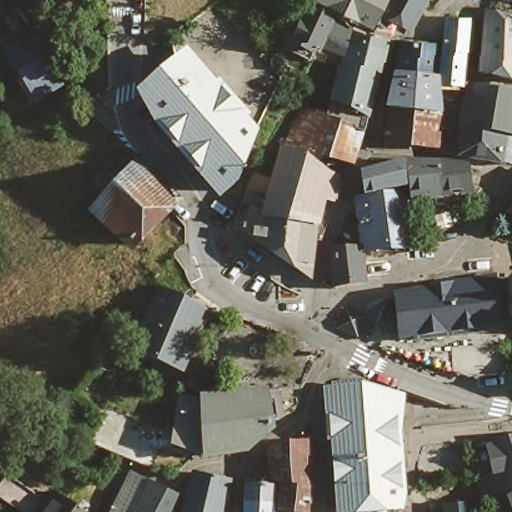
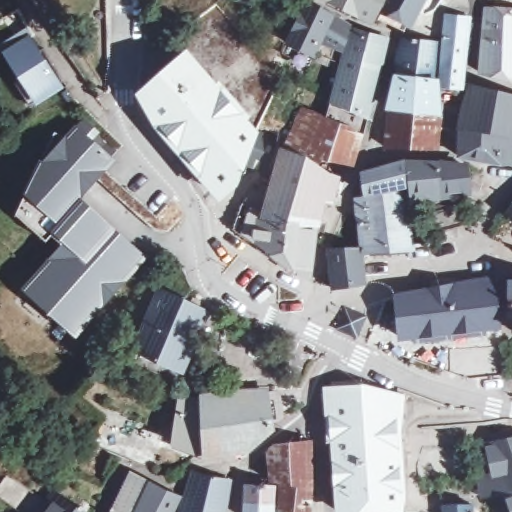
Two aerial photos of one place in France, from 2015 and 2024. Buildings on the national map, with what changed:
unchanged [(372,23),(322,0),(385,0),(377,14),(372,23)]
unchanged [(390,0),(427,0),(410,31),(381,16),(390,0)]
unchanged [(289,40),(297,25),(308,5),(333,17),(332,20),(341,26),(332,43),(322,37),(312,54),(289,40)]
unchanged [(480,73),(487,9),(492,10),(512,10),(512,81),(480,73)]
unchanged [(434,90),(438,40),(441,13),(465,20),(455,89),(434,90)]
unchanged [(363,134),(327,119),(334,95),(335,92),(348,50),(354,30),(386,40),(376,94),(363,134)]
unchanged [(25,74),(10,53),(29,39),(59,83),(40,96),(30,102),(15,81),(25,74)]
unchanged [(391,76),(397,40),(432,40),(427,83),(391,76)]
unchanged [(240,153),(237,168),(215,190),(164,133),(142,92),(139,85),(182,55),(183,54),(190,49),(255,121),(240,153)]
unchanged [(435,116),(385,108),(391,76),(427,83),(430,90),(435,116)]
unchanged [(490,134),(459,131),(472,86),(498,93),(490,134)]
unchanged [(502,137),(497,164),(459,159),(459,131),(490,134),(498,93),(512,96),(512,139),(502,137)]
unchanged [(379,145),(385,108),(435,116),(430,149),(379,145)]
unchanged [(310,158),(320,174),(338,179),(334,200),(319,199),(315,224),(267,215),(264,214),(265,211),(282,149),(289,151),(304,109),(327,119),(363,134),(354,164),(315,152),(310,158)]
new [(117,230),(147,259),(79,339),(22,289),(60,239),(52,233),(45,241),(17,214),(26,194),(41,161),(57,130),(67,137),(78,126),(116,161),(82,199),(117,230)]
demolished [(131,252),(92,219),(139,159),(177,199),(131,252)]
unchanged [(374,195),(370,173),(375,168),(404,161),(409,193),(374,195)]
unchanged [(434,195),(414,204),(413,198),(407,161),(437,164),(465,169),(469,190),(440,193),(434,195)]
unchanged [(365,254),(365,249),(362,202),(407,199),(407,200),(414,249),(365,254)]
unchanged [(437,236),(430,209),(465,199),(470,225),(437,236)]
unchanged [(255,243),(262,218),(264,214),(267,215),(315,224),(309,275),(255,243)]
unchanged [(334,290),(332,251),(360,249),(365,287),(334,290)]
unchanged [(509,310),(508,272),(512,272),(512,311),(509,310)]
unchanged [(494,279),(500,324),(484,329),(482,334),(444,339),(442,335),(398,343),(390,294),(494,279)]
unchanged [(182,374),(132,353),(161,291),(209,313),(182,374)]
unchanged [(336,328),(346,307),(367,317),(357,338),(336,328)]
unchanged [(399,511),(385,512),(338,512),(331,444),(339,392),(355,388),(389,386),(389,408),(398,407),(399,415),(390,416),(390,454),(399,511)]
unchanged [(264,420),(264,426),(240,447),(197,453),(199,403),(199,396),(208,394),(220,392),(222,402),(223,408),(270,401),(272,419),(264,420)]
unchanged [(192,451),(168,444),(175,401),(199,403),(197,453),(192,451)]
unchanged [(152,465),(93,444),(104,414),(159,436),(152,465)]
unchanged [(504,495),(482,499),(480,486),(472,451),(512,440),(512,512),(511,512),(504,495)]
unchanged [(310,512),(287,512),(281,511),(280,481),(277,481),(272,481),(267,456),(272,444),(310,441),(312,487),(310,512)]
unchanged [(134,474),(147,481),(154,484),(142,512),(117,512),(134,474)]
unchanged [(187,501),(199,474),(234,481),(229,512),(183,512),(187,501)]
unchanged [(245,486),(275,487),(273,512),(244,512),(245,486)]
unchanged [(160,487),(182,499),(175,512),(149,512),(160,487)]
unchanged [(60,496),(91,512),(48,512),(60,496)]
unchanged [(449,511),(476,509),(476,512),(449,512),(449,511)]

